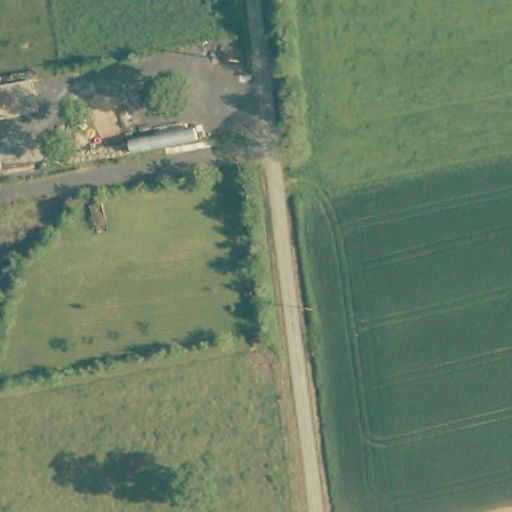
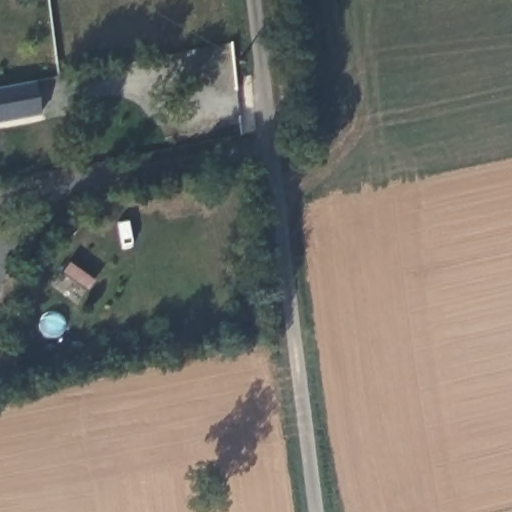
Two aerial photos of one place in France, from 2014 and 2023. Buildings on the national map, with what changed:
new [(34,79),(40,115),(0,121),(0,86),(34,79)]

